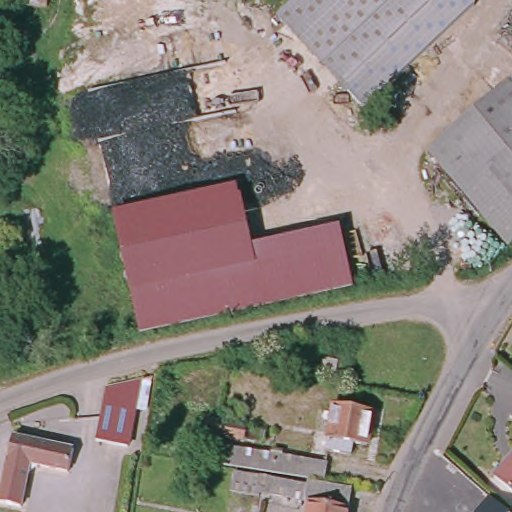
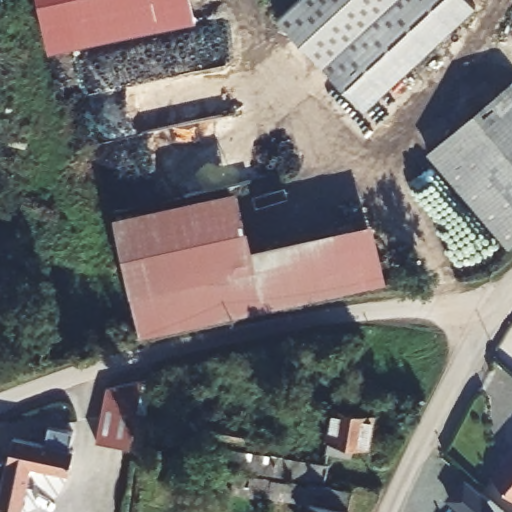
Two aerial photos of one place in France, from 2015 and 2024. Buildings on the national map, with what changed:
new [(192,0),(196,18),(50,48),(40,0),(192,0)]
unchanged [(473,0),(477,4),(365,109),(277,19),(296,0),(473,0)]
unchanged [(512,79),(512,244),(509,247),(429,151),(512,79)]
unchanged [(252,245),(340,227),(354,288),(140,336),(114,215),(240,186),(252,245)]
new [(374,220),(387,280),(354,288),(340,227),(374,220)]
unchanged [(336,370),(324,367),(327,353),(339,356),(336,370)]
unchanged [(107,389),(142,381),(128,445),(97,441),(107,389)]
unchanged [(382,418),(375,447),(360,443),(357,458),(332,452),(342,408),(382,418)]
unchanged [(77,454),(72,477),(32,467),(22,511),(1,505),(15,438),(77,454)]
unchanged [(348,512),(305,512),(306,507),(230,494),(233,469),(219,466),(222,445),(326,464),(323,484),(351,490),(348,512)]
unchanged [(495,477),(512,457),(512,492),(495,477)]
unchanged [(506,512),(478,512),(490,498),(506,512)]

